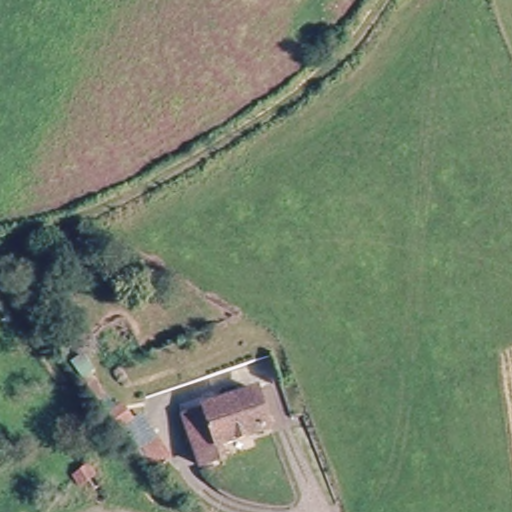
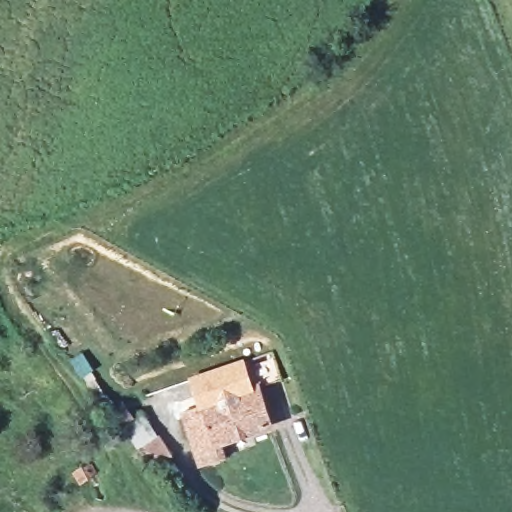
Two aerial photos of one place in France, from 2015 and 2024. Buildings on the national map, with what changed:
unchanged [(274,428),(222,448),(231,463),(204,471),(184,415),(199,404),(251,383),(274,428)]

